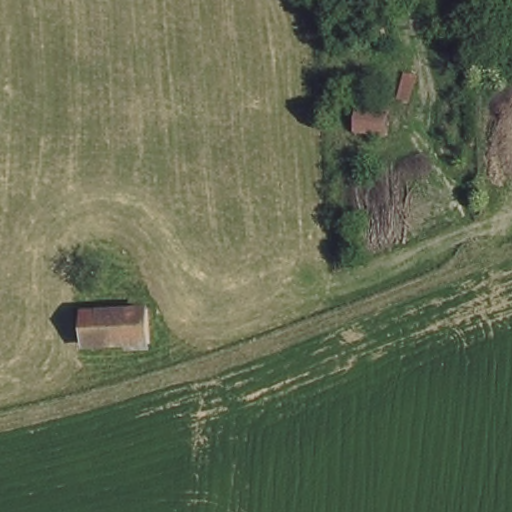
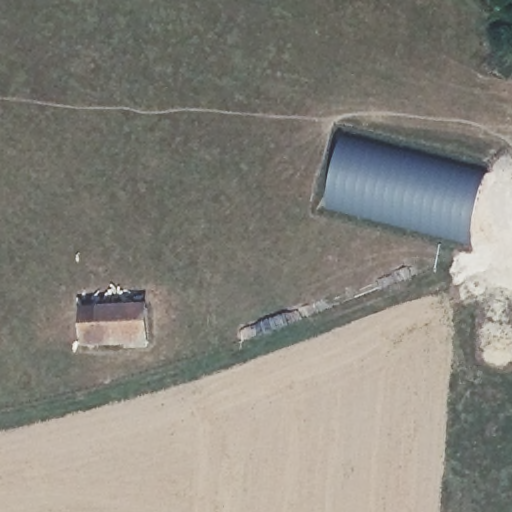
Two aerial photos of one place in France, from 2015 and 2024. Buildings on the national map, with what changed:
demolished [(429,10),(429,0),(454,0),(453,13),(429,10)]
new [(344,137),(404,150),(486,172),(468,245),(414,232),(322,208),(344,137)]
unchanged [(143,347),(82,350),(82,316),(141,312),(143,347)]

